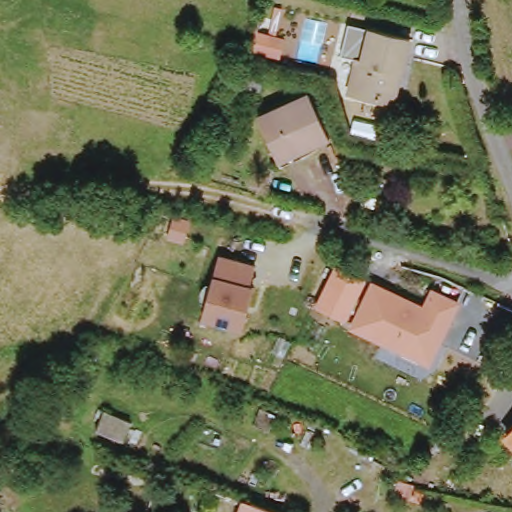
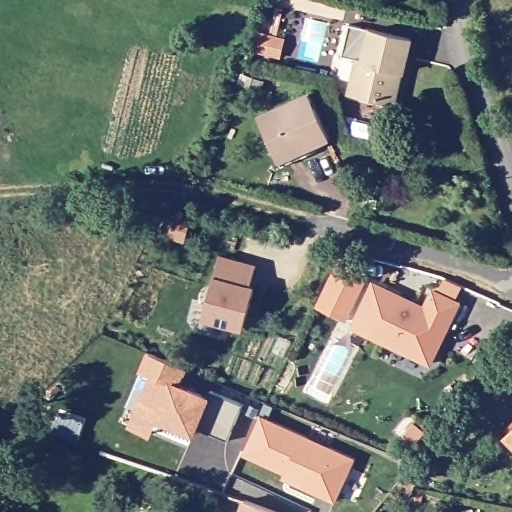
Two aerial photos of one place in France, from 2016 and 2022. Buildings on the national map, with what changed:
unchanged [(402,99),(396,98),(393,97),(355,90),(358,75),(359,70),(361,60),(344,57),(351,25),(413,36),(407,70),(405,80),(402,99)]
unchanged [(259,123),(313,99),(333,145),(304,157),(300,149),(275,160),(259,123)]
unchanged [(204,318),(221,257),(257,266),(252,287),(256,288),(245,329),(204,318)]
unchanged [(335,264),(366,280),(345,322),(314,307),(335,264)]
unchanged [(423,302),(430,285),(460,299),(430,365),(348,326),(371,279),(423,302)]
new [(226,445),(194,432),(138,407),(151,377),(141,372),(148,352),(186,368),(179,385),(208,396),(211,390),(243,403),(226,445)]
demolished [(135,422),(125,444),(98,433),(108,412),(135,422)]
new [(356,458),(337,503),(282,479),(284,473),(243,454),(261,414),(356,458)]
unchanged [(265,512),(245,512),(247,506),(265,512)]

